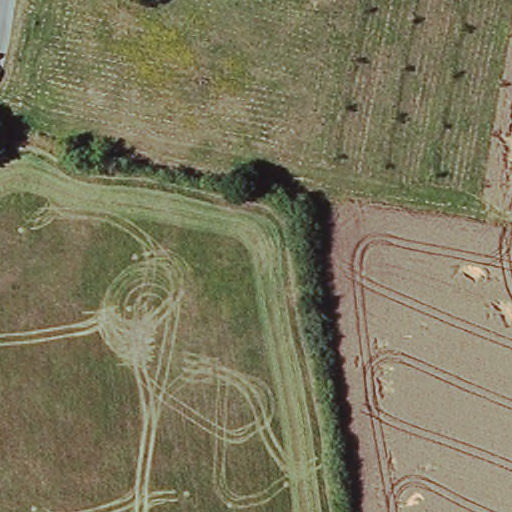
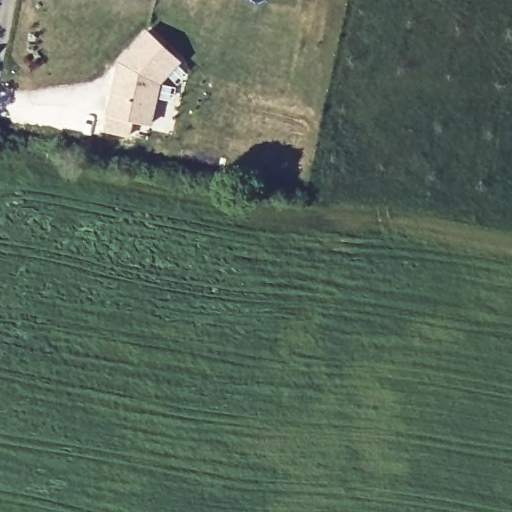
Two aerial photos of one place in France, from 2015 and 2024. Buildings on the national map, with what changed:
new [(117,62),(146,31),(178,61),(158,82),(148,124),(106,114),(117,62)]

